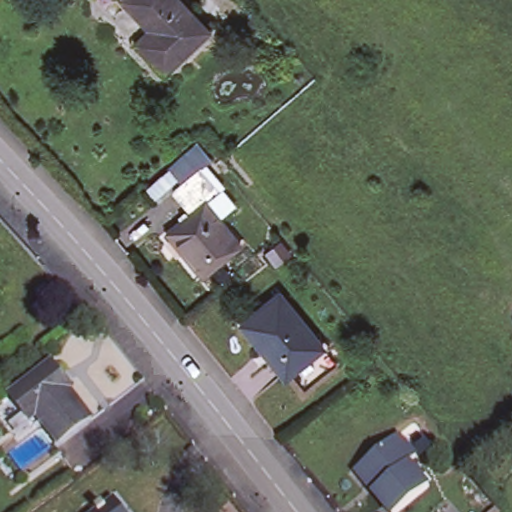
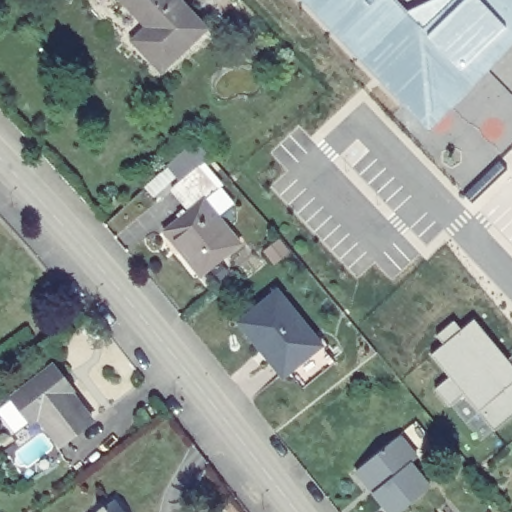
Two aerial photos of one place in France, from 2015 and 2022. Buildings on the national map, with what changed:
unchanged [(206,30),(160,74),(133,44),(149,29),(121,0),(177,0),(206,30)]
new [(415,146),(281,0),(385,0),(401,17),(420,0),(512,0),(512,52),(415,146)]
unchanged [(220,191),(208,200),(241,240),(203,273),(168,233),(179,224),(163,205),(203,171),(220,191)]
unchanged [(316,349),(283,375),(261,349),(265,346),(244,321),(271,297),(316,349)]
new [(462,402),(449,413),(427,388),(441,376),(424,355),(436,345),(427,335),(455,312),(464,322),(476,312),(512,357),(512,421),(491,437),(462,402)]
unchanged [(87,424),(61,444),(34,411),(26,416),(12,401),(46,374),(87,424)]
unchanged [(361,469),(401,438),(419,460),(412,465),(432,489),(404,512),(390,512),(375,494),(358,472),(359,472),(361,469)]
unchanged [(111,512),(117,508),(120,512),(111,512)]

